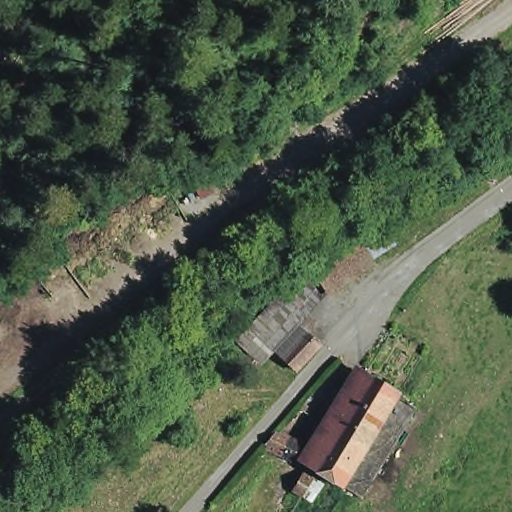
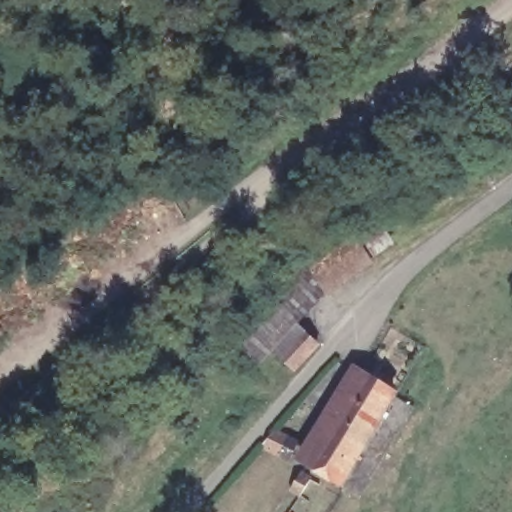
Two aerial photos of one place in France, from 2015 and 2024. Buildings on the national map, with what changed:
unchanged [(268,303),(279,290),(289,279),(300,267),(323,287),(311,300),(302,311),(291,323),(266,351),(256,362),(253,360),(232,342),(268,303)]
unchanged [(317,353),(293,379),(283,370),(278,365),(302,340),(308,346),(317,353)]
unchanged [(295,459),(314,426),(308,422),(309,416),(340,365),(348,370),(384,392),(401,402),(393,415),(386,427),(348,491),(331,481),(295,459)]
unchanged [(288,460),(278,455),(261,447),(274,431),(286,437),(296,442),(288,460)]
unchanged [(289,490),(279,485),(291,467),(299,472),(289,490)]

